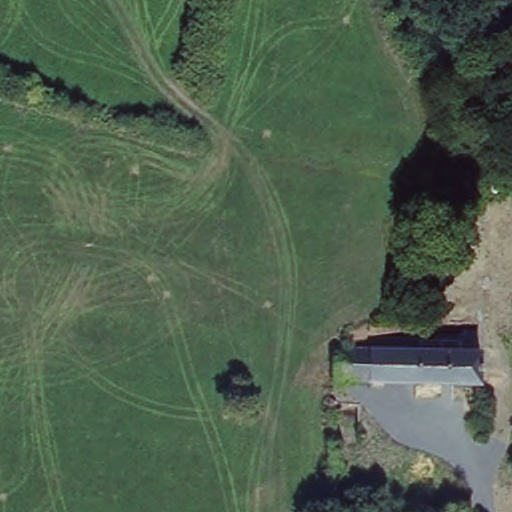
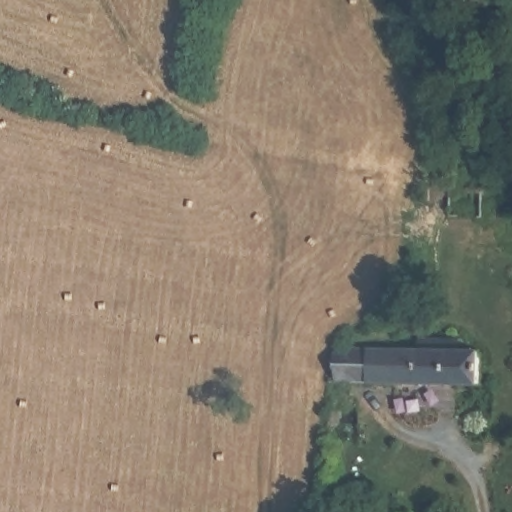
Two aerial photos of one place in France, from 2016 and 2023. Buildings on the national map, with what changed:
unchanged [(442,379),(330,379),(330,348),(410,347),(410,339),(457,337),(459,346),(477,347),(476,379),(442,379)]
unchanged [(328,448),(327,481),(314,479),(315,448),(328,448)]

